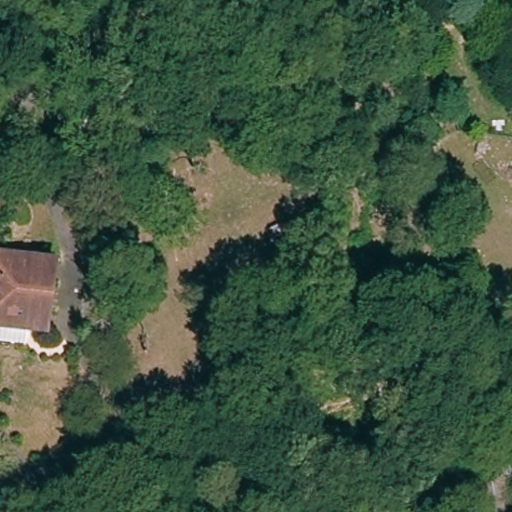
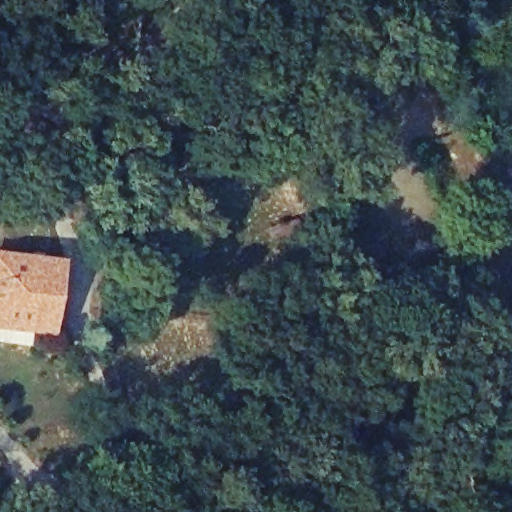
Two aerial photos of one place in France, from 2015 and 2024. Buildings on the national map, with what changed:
unchanged [(55,327),(0,320),(0,249),(63,257),(55,327)]
unchanged [(512,463),(512,512),(476,512),(472,466),(512,463)]

